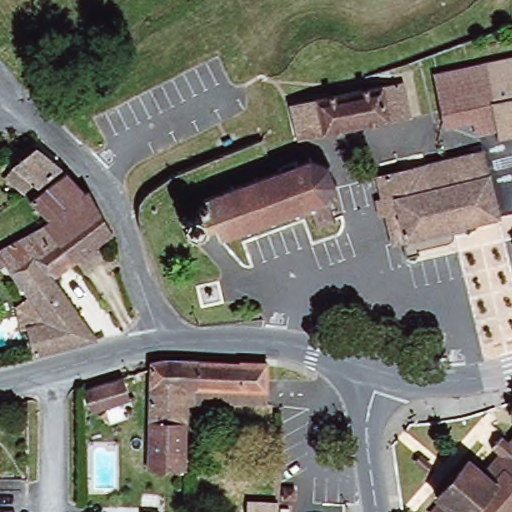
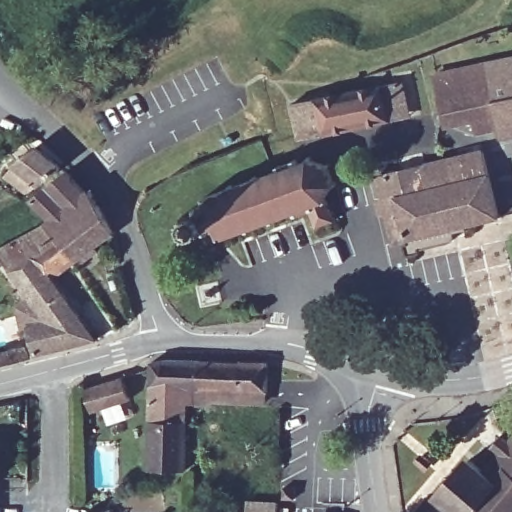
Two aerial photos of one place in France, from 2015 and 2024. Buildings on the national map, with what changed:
unchanged [(497,143),(490,107),(481,67),(512,62),(512,140),(497,143)]
unchanged [(434,77),(481,67),(490,107),(442,117),(434,77)]
unchanged [(289,104),(383,84),(401,80),(408,115),(390,119),(296,138),(289,104)]
unchanged [(14,164),(35,145),(59,167),(37,185),(14,164)]
unchanged [(416,248),(417,251),(406,254),(403,239),(393,242),(377,176),(483,150),(499,216),(451,227),(454,238),(416,248)]
unchanged [(205,205),(207,203),(211,201),(210,195),(315,157),(332,164),(340,181),(331,196),(340,217),(322,224),(315,204),(224,236),(220,224),(211,228),(195,234),(188,218),(205,211),(205,205)]
unchanged [(48,219),(30,198),(66,169),(84,191),(87,189),(112,233),(74,261),(44,222),(48,219)]
unchanged [(74,261),(53,277),(97,338),(35,353),(27,324),(44,318),(5,261),(0,264),(0,245),(44,222),(74,261)]
unchanged [(185,404),(184,471),(146,470),(149,363),(171,360),(196,361),(195,404),(185,404)]
unchanged [(211,401),(210,404),(195,404),(196,361),(266,362),(266,375),(265,391),(264,403),(211,401)]
unchanged [(100,410),(90,413),(83,390),(122,377),(130,401),(121,403),(127,420),(106,427),(100,410)]
unchanged [(472,458),(488,472),(503,454),(495,446),(503,436),(512,443),(512,512),(435,512),(445,500),(440,496),(472,458)]
unchanged [(247,512),(246,503),(276,501),(276,512),(247,512)]

